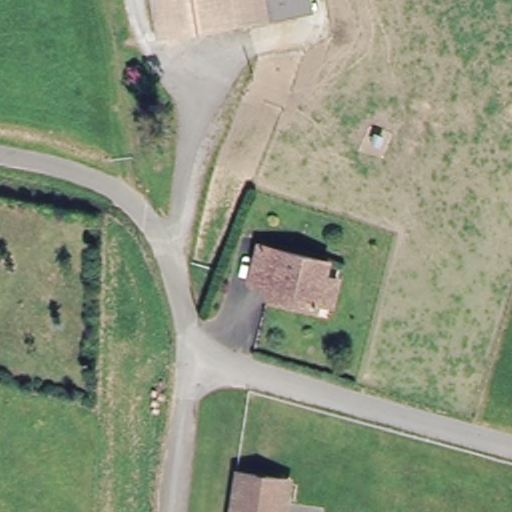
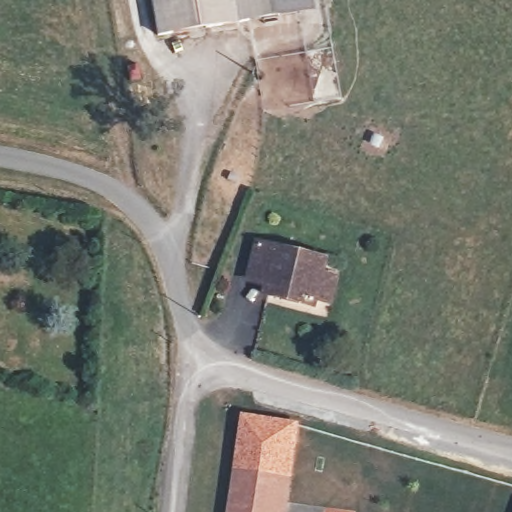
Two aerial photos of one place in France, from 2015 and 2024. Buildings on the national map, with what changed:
unchanged [(233,27),(156,38),(151,0),(296,0),(299,18),(233,27)]
unchanged [(312,17),(299,18),(296,0),(309,0),(312,17)]
unchanged [(332,299),(317,295),(315,305),(267,294),(271,275),(251,271),(257,240),(326,256),(323,270),(338,274),(332,299)]
new [(281,478),(237,473),(245,415),(299,423),(290,480),(281,478)]
unchanged [(232,512),(237,473),(281,478),(277,512),(232,512)]
unchanged [(290,480),(285,512),(277,512),(281,478),(290,480)]

